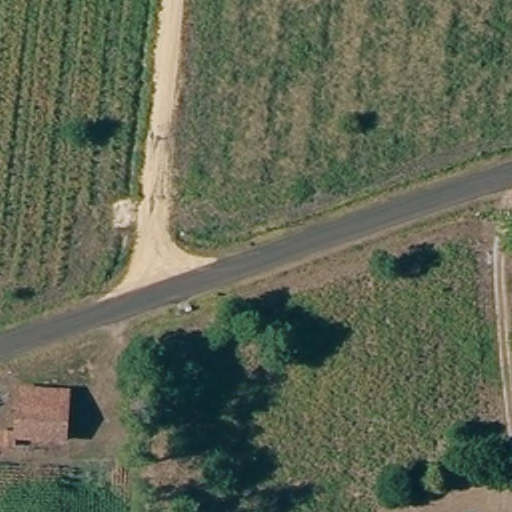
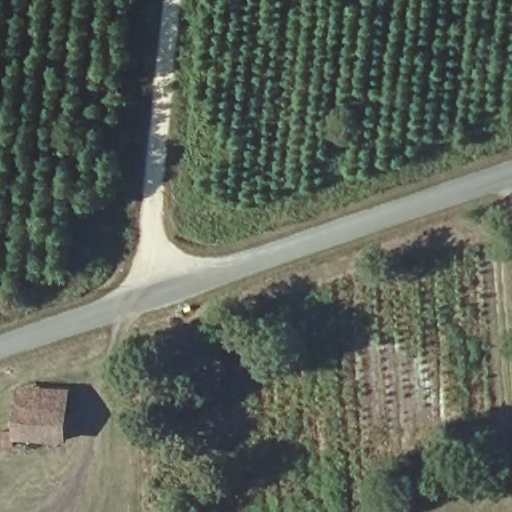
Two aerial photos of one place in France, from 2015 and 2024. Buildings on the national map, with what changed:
unchanged [(15,437),(17,404),(18,389),(63,392),(62,408),(60,441),(15,437)]
unchanged [(10,427),(10,441),(0,441),(0,427),(10,427)]

